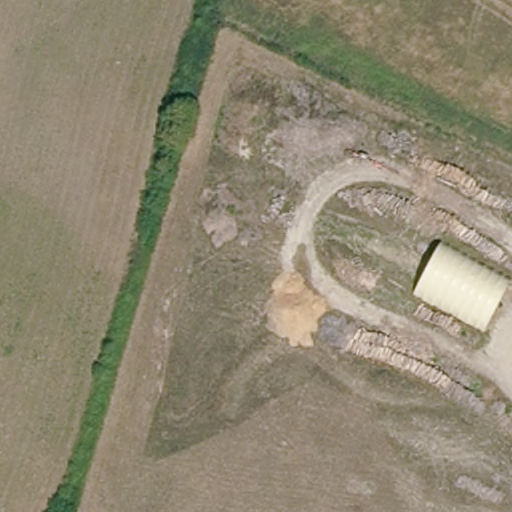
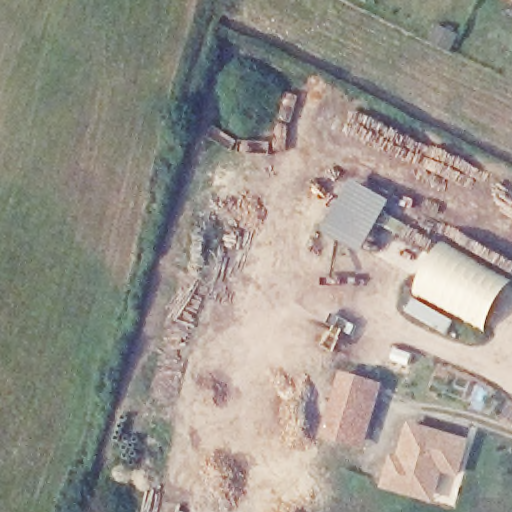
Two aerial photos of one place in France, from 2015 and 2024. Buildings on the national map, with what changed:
new [(511,0),(512,0),(512,1),(511,0)]
new [(435,23),(458,34),(449,52),(426,40),(435,23)]
new [(374,195),(362,218),(376,225),(362,250),(333,233),(358,188),(374,195)]
unchanged [(417,288),(438,248),(507,285),(487,327),(417,288)]
new [(323,437),(339,371),(383,384),(365,447),(323,437)]
new [(443,473),(435,503),(382,488),(389,458),(399,459),(408,424),(472,440),(461,476),(443,473)]

